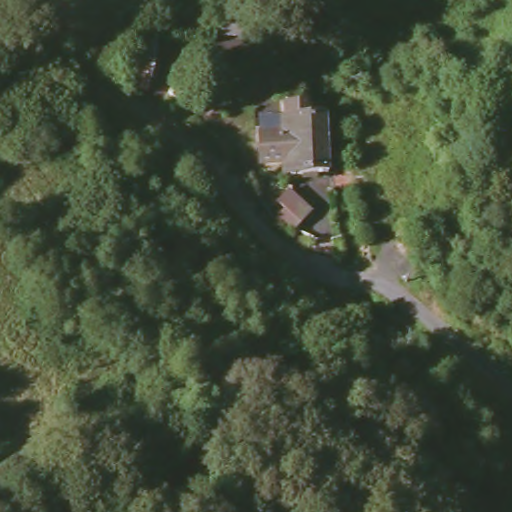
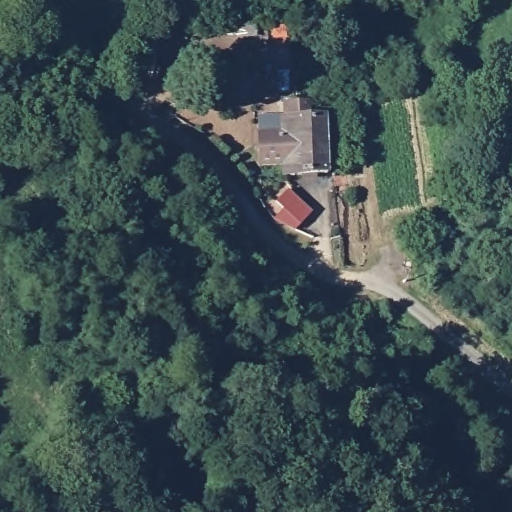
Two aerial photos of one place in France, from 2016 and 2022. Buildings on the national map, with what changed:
unchanged [(252,46),(215,42),(215,29),(252,32),(252,46)]
unchanged [(142,37),(152,39),(150,66),(154,66),(150,77),(145,77),(141,85),(135,83),(139,80),(142,37)]
unchanged [(270,114),(272,114),(272,101),(295,101),(296,113),(317,114),(318,165),(273,165),(272,155),(247,155),(246,126),(270,125),(270,114)]
unchanged [(285,206),(279,201),(289,189),(312,207),(297,225),(286,224),(278,215),(285,206)]

